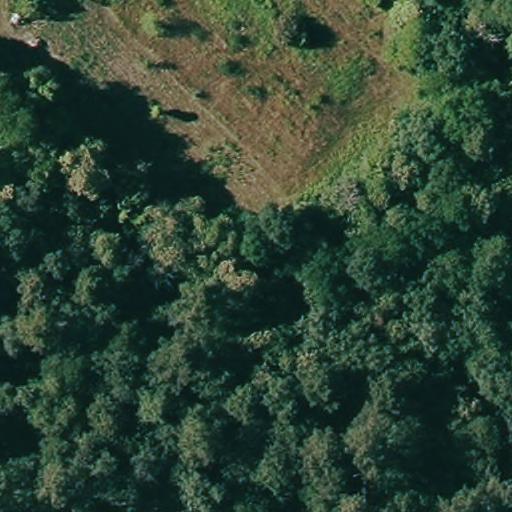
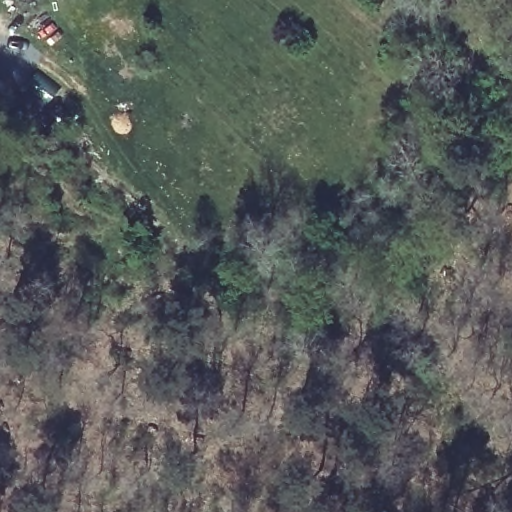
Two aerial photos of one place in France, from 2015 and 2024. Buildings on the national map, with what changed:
unchanged [(0,91),(0,79),(5,82),(0,91)]

